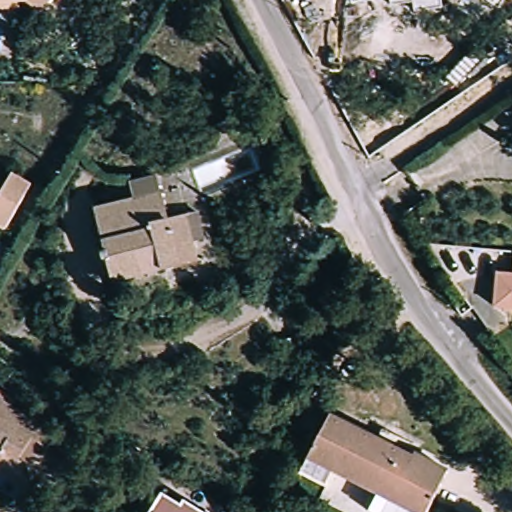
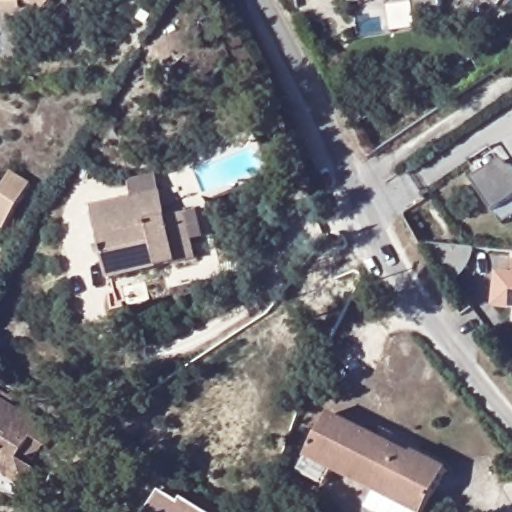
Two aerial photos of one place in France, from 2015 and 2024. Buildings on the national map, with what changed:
unchanged [(0,0),(24,0),(24,2),(0,3),(0,0)]
unchanged [(37,0),(52,0),(45,7),(37,0)]
unchanged [(241,116),(247,128),(222,139),(216,126),(241,116)]
new [(494,216),(473,182),(506,160),(512,168),(512,202),(494,216)]
unchanged [(135,194),(131,177),(158,171),(168,216),(198,208),(205,235),(194,237),(198,256),(113,277),(109,258),(105,259),(101,244),(105,242),(95,204),(135,194)]
unchanged [(11,174),(30,185),(5,229),(0,226),(0,194),(11,174)]
unchanged [(493,302),(494,285),(496,268),(512,270),(512,304),(493,302)]
unchanged [(304,333),(313,360),(290,368),(281,341),(304,333)]
unchanged [(27,404),(59,424),(48,441),(33,432),(20,452),(38,464),(27,482),(0,465),(0,391),(25,407),(27,404)]
unchanged [(419,441),(420,438),(454,456),(426,510),(429,511),(428,512),(404,512),(374,497),(383,478),(339,456),(331,471),(305,458),(335,399),(419,441)]
unchanged [(154,491),(157,487),(176,498),(198,512),(142,512),(154,491)]

